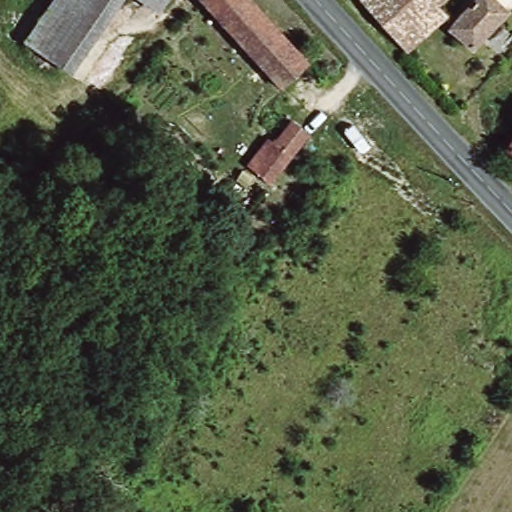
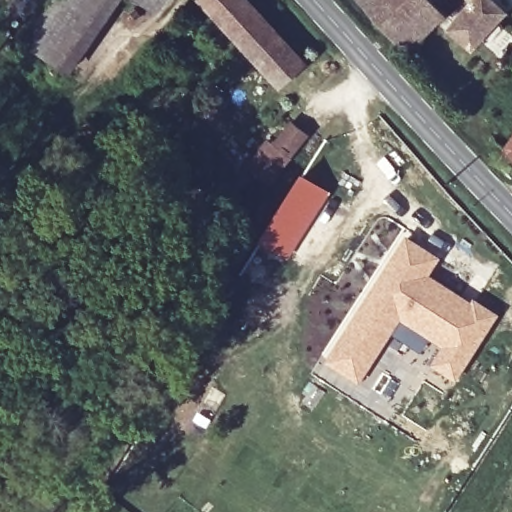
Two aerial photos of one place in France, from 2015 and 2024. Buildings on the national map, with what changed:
unchanged [(26,40),(54,0),(103,0),(58,62),(26,40)]
unchanged [(134,0),(161,0),(152,13),(134,0)]
unchanged [(200,0),(245,0),(307,67),(280,92),(196,3),(200,0)]
unchanged [(451,17),(417,57),(359,10),(367,0),(454,0),(446,10),(451,17)]
unchanged [(478,0),(498,0),(507,7),(468,57),(448,41),(478,0)]
unchanged [(292,127),(306,142),(287,162),(267,181),(249,162),(269,143),(273,147),(292,127)]
unchanged [(501,150),(512,135),(512,158),(501,150)]
new [(262,240),(301,177),(326,192),(286,255),(262,240)]
new [(325,362),(406,236),(440,258),(430,275),(472,302),(475,298),(500,315),(456,381),(431,365),(442,348),(403,319),(359,383),(325,362)]

